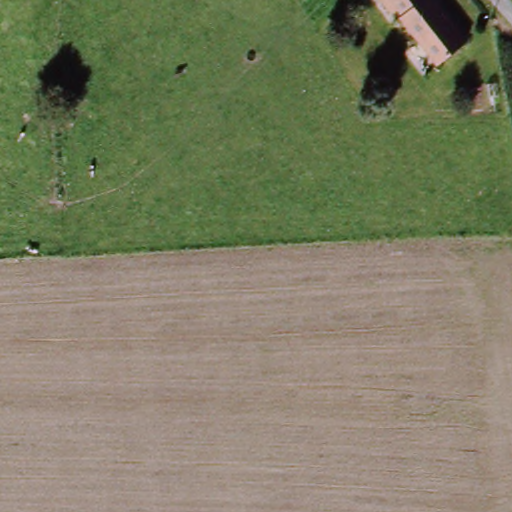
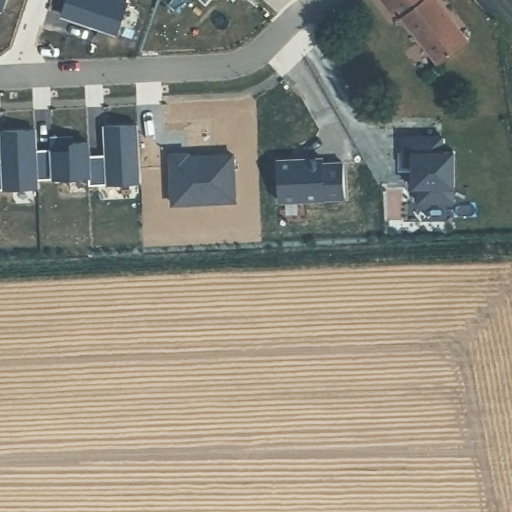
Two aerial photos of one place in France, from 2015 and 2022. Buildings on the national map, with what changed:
new [(0,9),(0,0),(6,0),(3,10),(0,9)]
new [(60,14),(65,0),(125,0),(114,33),(60,14)]
unchanged [(401,16),(389,0),(427,0),(465,44),(437,65),(401,16)]
new [(1,155),(0,141),(0,127),(33,125),(34,146),(50,145),(50,134),(70,133),(70,139),(87,139),(87,152),(104,151),(102,122),(136,121),(138,179),(87,181),(87,173),(65,174),(35,175),(35,184),(0,185),(0,156),(1,155)]
new [(442,137),(442,152),(453,152),(452,202),(422,202),(422,187),(416,187),(417,165),(407,165),(407,137),(442,137)]
new [(322,159),(323,164),(343,163),(344,199),(278,201),(277,160),(322,159)]

